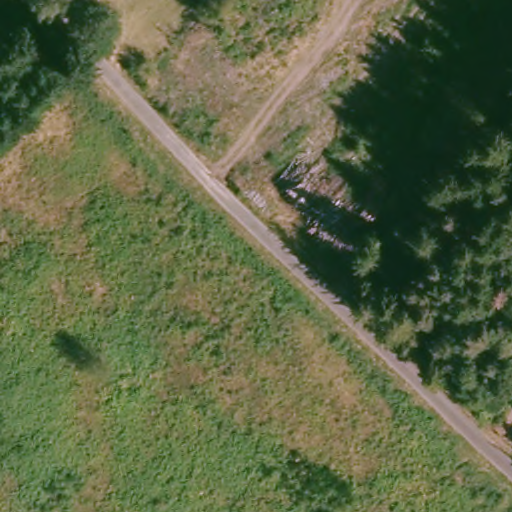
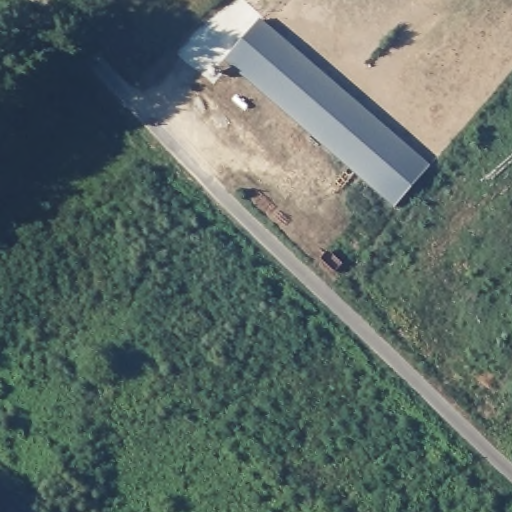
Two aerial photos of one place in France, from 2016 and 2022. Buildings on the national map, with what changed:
new [(223,60),(260,20),(428,165),(394,206),(223,60)]

